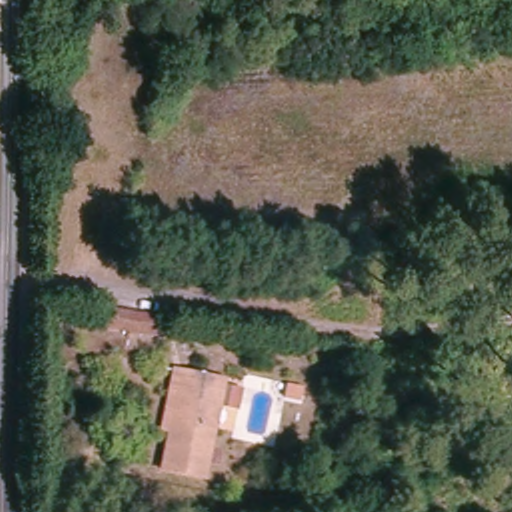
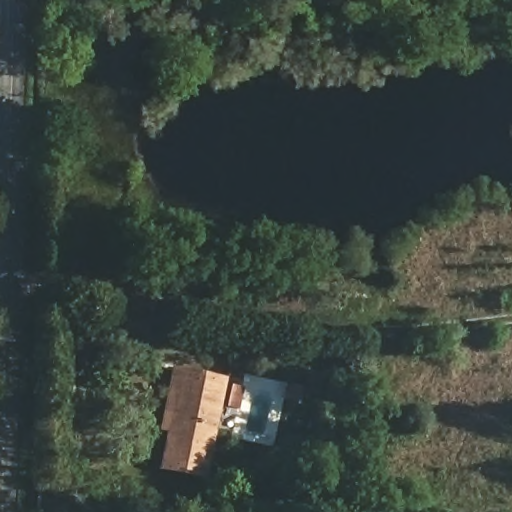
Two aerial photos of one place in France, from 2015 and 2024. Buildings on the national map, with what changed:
unchanged [(102,308),(161,316),(157,336),(96,328),(102,308)]
unchanged [(28,355),(16,354),(16,333),(28,333),(75,335),(73,356),(28,355)]
unchanged [(226,378),(205,481),(160,470),(167,432),(159,430),(172,367),(226,378)]

